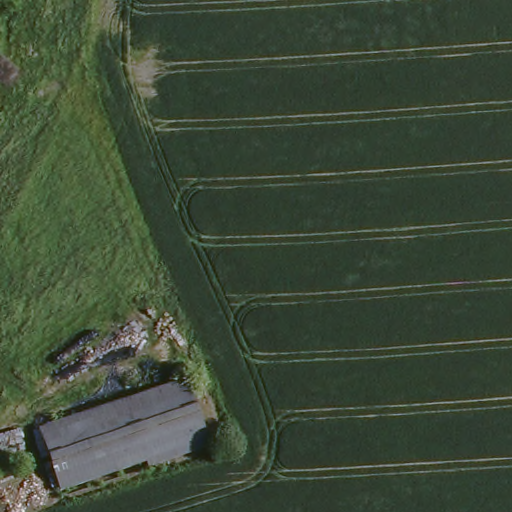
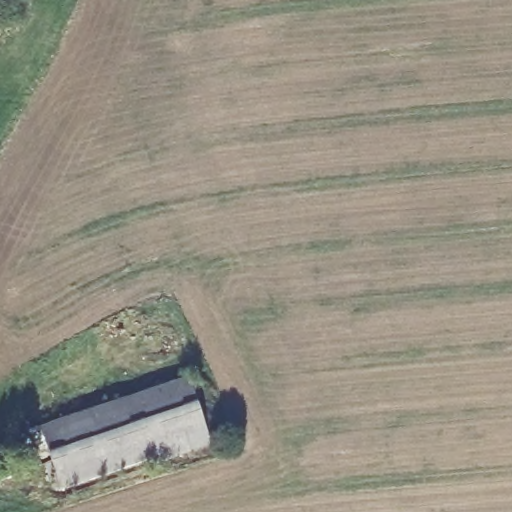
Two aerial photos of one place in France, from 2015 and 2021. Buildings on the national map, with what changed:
unchanged [(195,385),(214,450),(62,490),(45,427),(195,385)]

